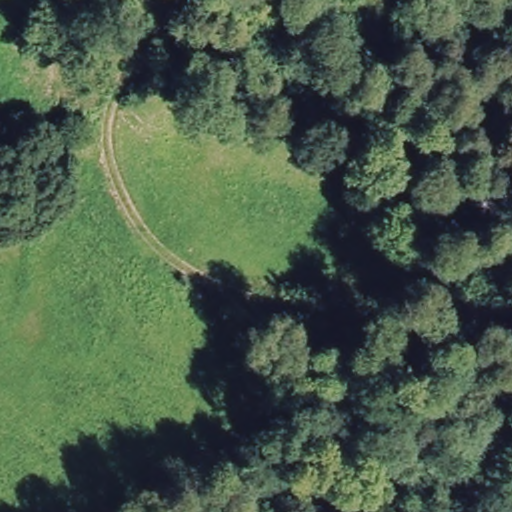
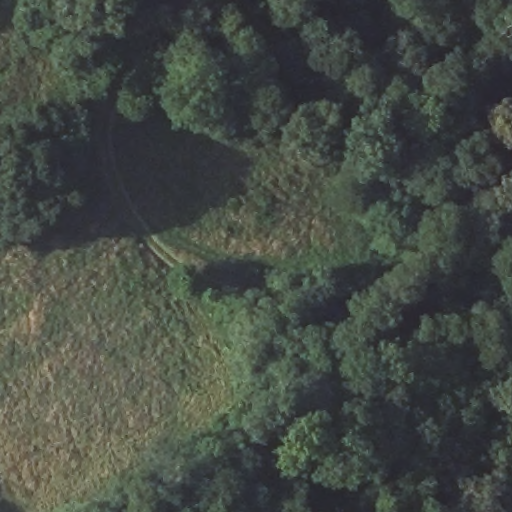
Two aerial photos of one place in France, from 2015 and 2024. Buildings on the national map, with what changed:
[]

